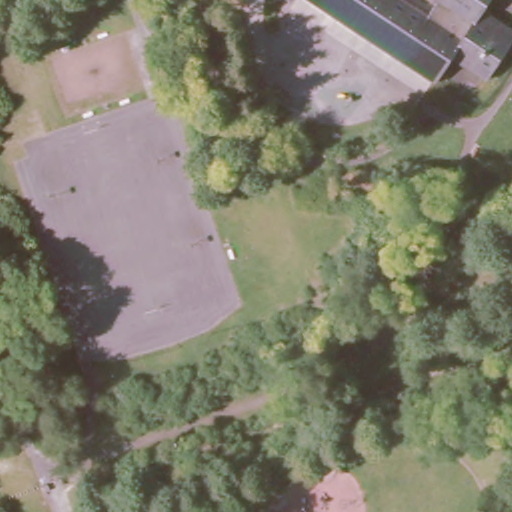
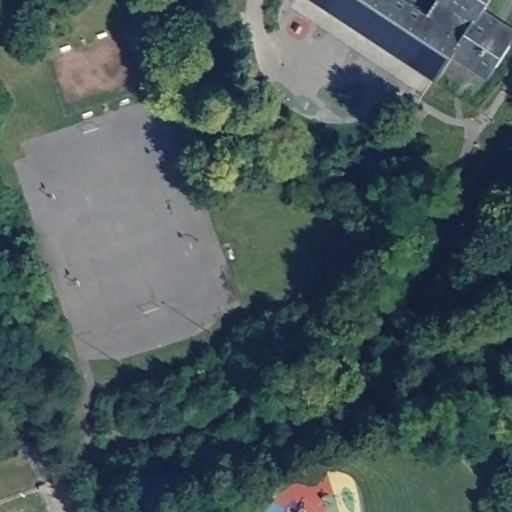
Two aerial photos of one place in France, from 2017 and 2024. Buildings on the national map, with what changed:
unchanged [(481,8),(512,28),(512,36),(486,75),(451,53),(434,78),(315,0),(487,0),(481,8)]

